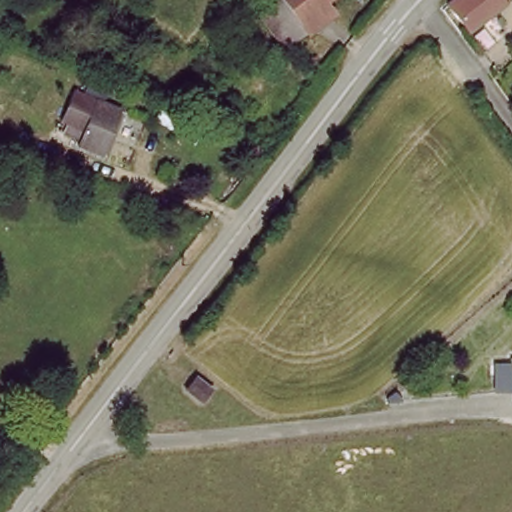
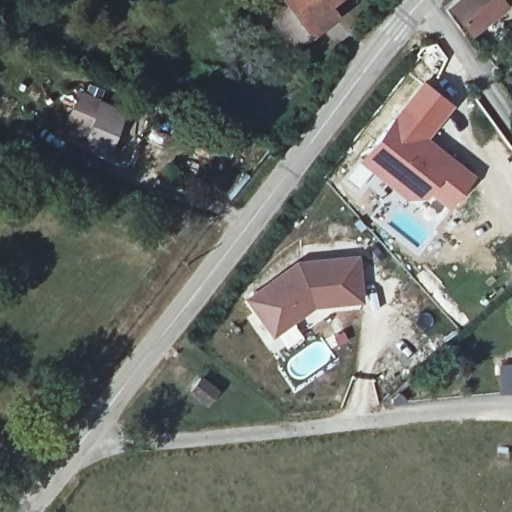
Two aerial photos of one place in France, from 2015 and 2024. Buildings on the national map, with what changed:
unchanged [(332,24),(313,45),(283,17),(298,0),(336,0),(332,24)]
unchanged [(455,0),(456,0),(509,0),(478,26),(455,0)]
unchanged [(125,104),(109,153),(83,144),(88,128),(67,121),(78,87),(125,104)]
new [(396,114),(475,174),(449,208),(428,192),(424,196),(405,198),(358,160),(396,114)]
new [(300,261),(362,257),(365,304),(319,306),(276,337),(249,297),(300,261)]
unchanged [(510,364),(512,364),(512,390),(508,390),(510,364)]

